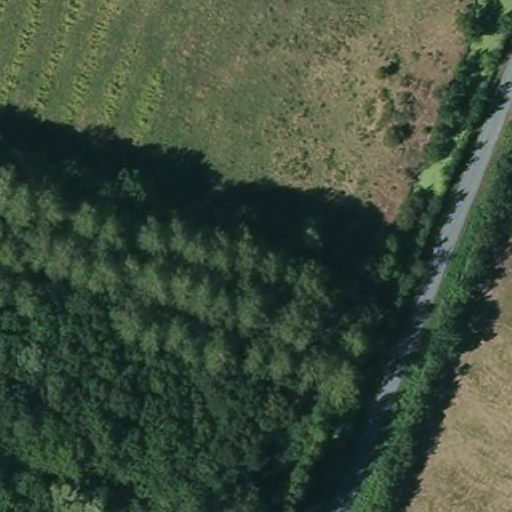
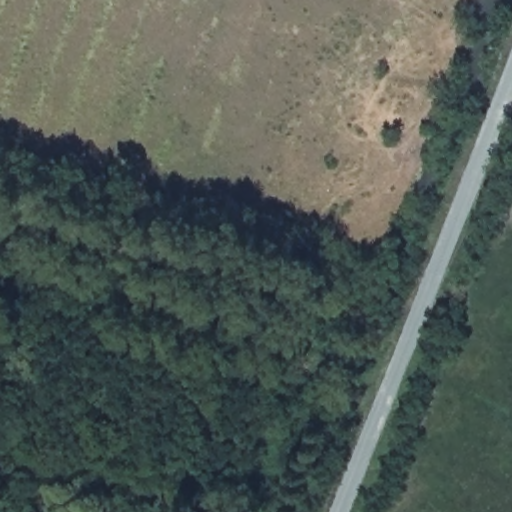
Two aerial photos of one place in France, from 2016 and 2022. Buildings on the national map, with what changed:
[]

